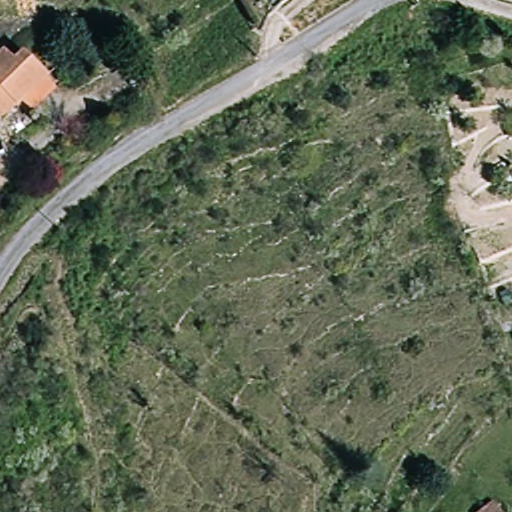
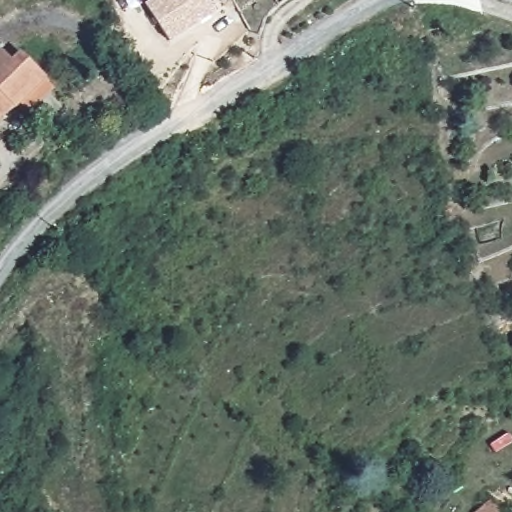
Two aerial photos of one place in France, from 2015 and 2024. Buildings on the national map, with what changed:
new [(170,42),(145,4),(150,0),(210,0),(217,10),(170,42)]
unchanged [(19,58),(28,50),(49,76),(0,120),(0,61),(12,50),(19,58)]
unchanged [(486,512),(482,512),(473,502),(487,490),(499,500),(486,512)]

